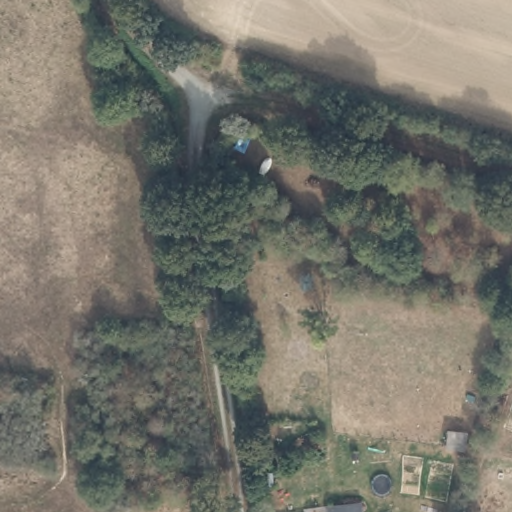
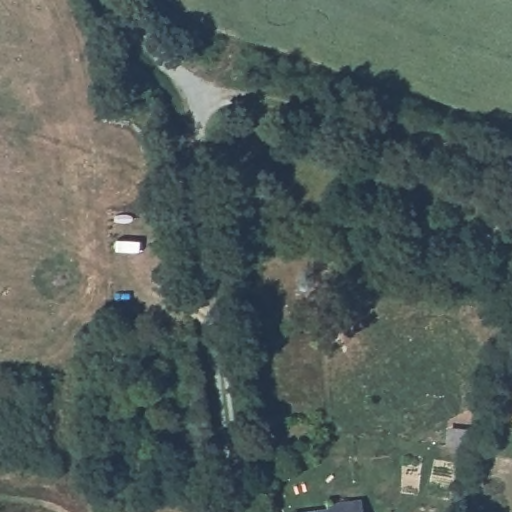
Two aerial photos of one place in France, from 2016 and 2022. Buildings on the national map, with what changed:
unchanged [(356,505),(356,512),(325,512),(330,505),(356,505)]

